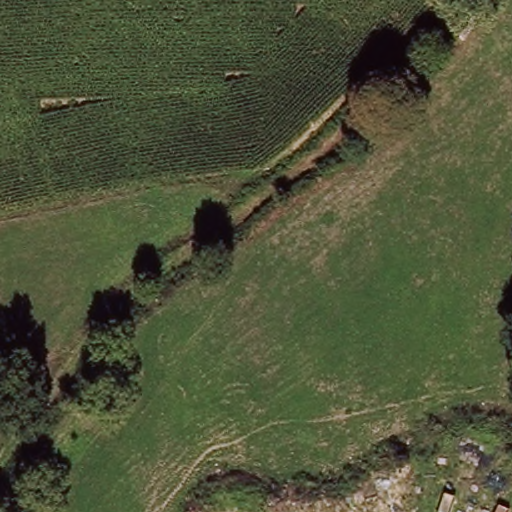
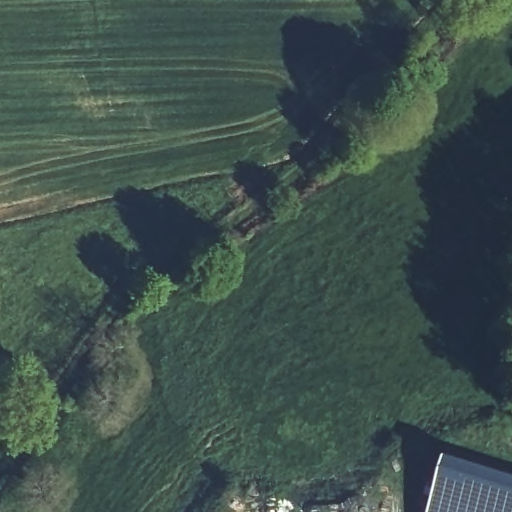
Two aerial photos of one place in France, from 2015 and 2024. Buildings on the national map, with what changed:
new [(450,453),(512,473),(512,512),(431,512),(450,453)]

